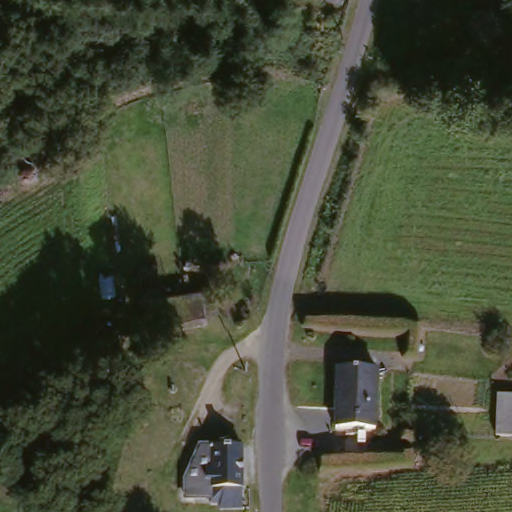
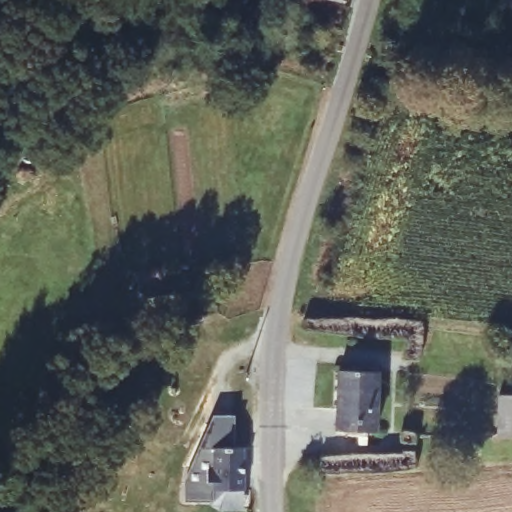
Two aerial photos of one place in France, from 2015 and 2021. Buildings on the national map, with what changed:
unchanged [(336,371),(378,373),(376,431),(335,429),(336,371)]
unchanged [(512,400),(512,442),(503,441),(505,400),(512,400)]
unchanged [(226,446),(237,448),(239,464),(241,493),(203,496),(204,507),(182,507),(181,478),(186,475),(194,450),(197,451),(226,446)]

